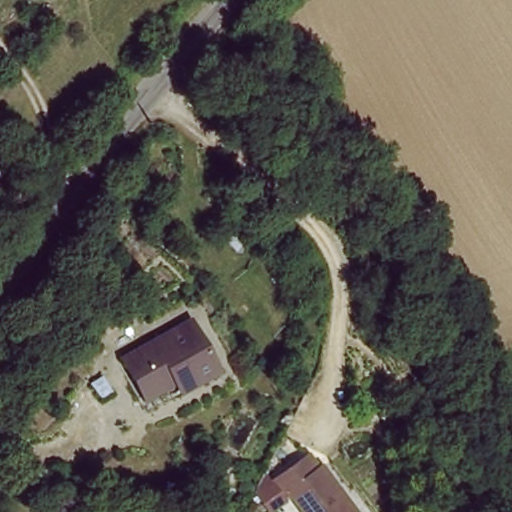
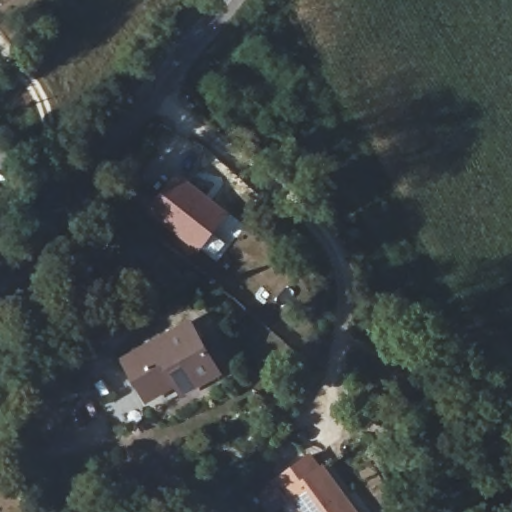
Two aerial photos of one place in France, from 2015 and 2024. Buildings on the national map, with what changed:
new [(146,211),(177,173),(228,212),(198,251),(146,211)]
unchanged [(0,199),(0,185),(5,187),(0,199)]
unchanged [(176,378),(161,387),(151,370),(137,378),(125,358),(193,320),(221,371),(199,383),(183,392),(176,378)]
unchanged [(322,471),(326,468),(345,496),(341,500),(350,512),(305,512),(292,493),(289,495),(278,480),(312,456),(322,471)]

